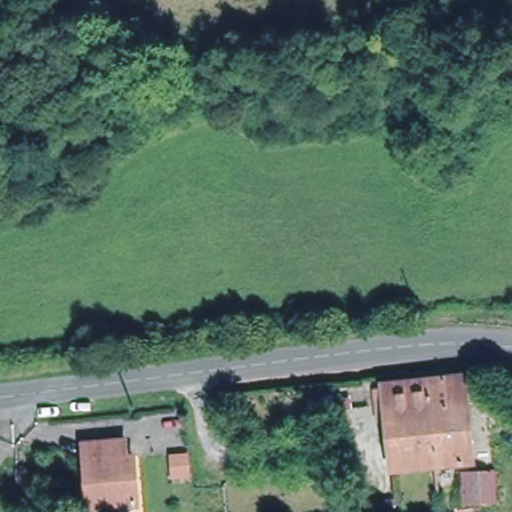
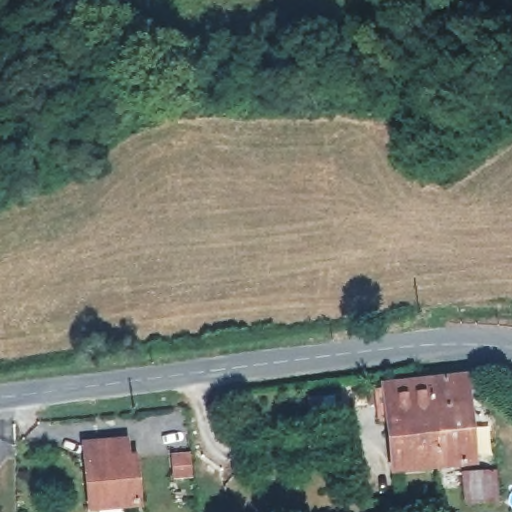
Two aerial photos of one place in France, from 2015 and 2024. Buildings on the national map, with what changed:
unchanged [(458,453),(383,462),(377,402),(389,401),(386,374),(451,368),(458,453)]
unchanged [(134,500),(85,504),(80,440),(121,437),(122,449),(130,449),(134,500)]
unchanged [(485,492),(435,496),(433,481),(449,480),(448,465),(482,463),(485,492)]

